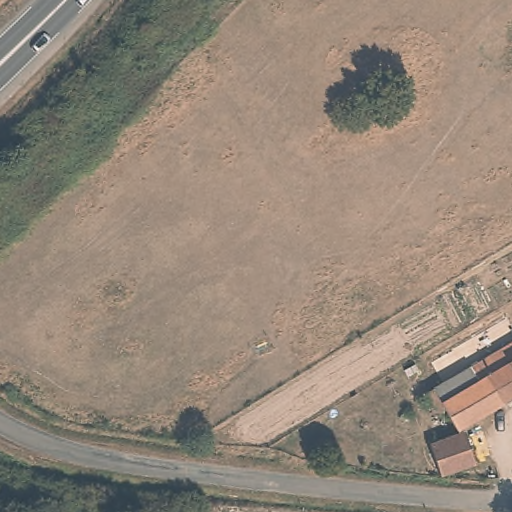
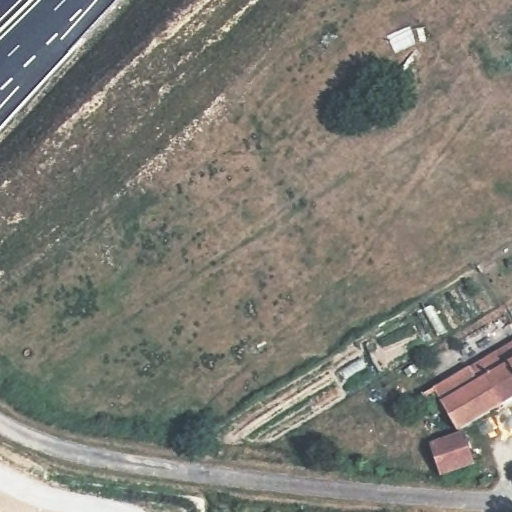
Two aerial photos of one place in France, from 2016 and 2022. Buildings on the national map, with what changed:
unchanged [(483,361),(512,344),(512,396),(505,400),(483,361)]
unchanged [(505,400),(458,429),(447,411),(437,418),(425,397),(483,361),(505,400)]
unchanged [(432,443),(467,433),(477,461),(441,475),(432,443)]

